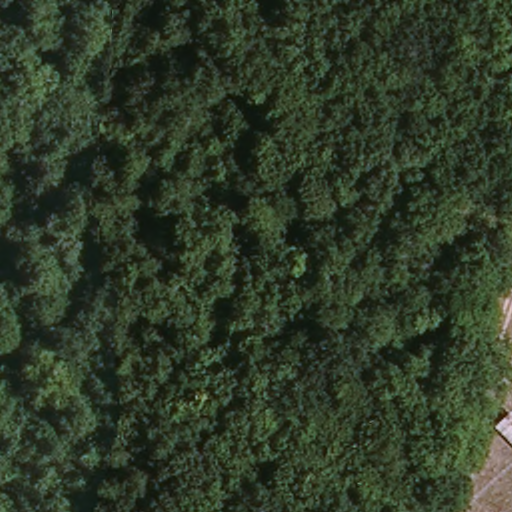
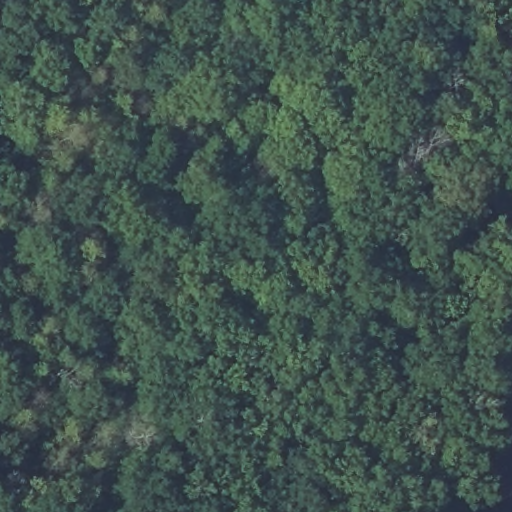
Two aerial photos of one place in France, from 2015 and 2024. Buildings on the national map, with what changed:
unchanged [(491,428),(508,409),(512,413),(512,448),(491,428)]

